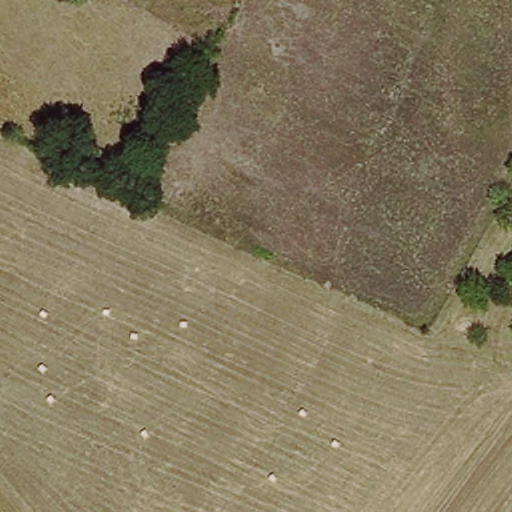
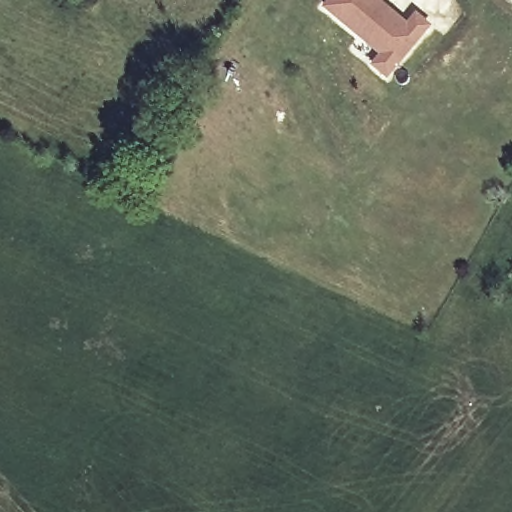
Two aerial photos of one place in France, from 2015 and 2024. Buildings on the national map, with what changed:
new [(417,11),(433,24),(387,79),(370,66),(378,55),(321,8),(328,0),(380,0),(408,22),(417,11)]

